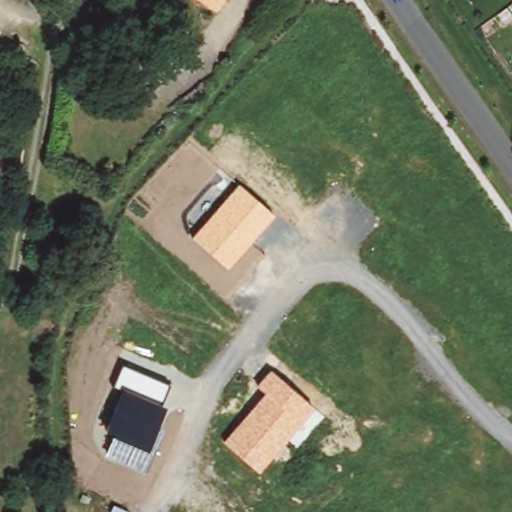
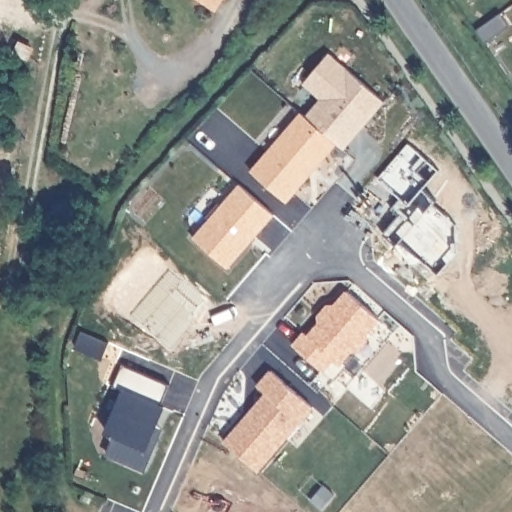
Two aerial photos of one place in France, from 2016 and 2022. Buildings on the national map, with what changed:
unchanged [(184,0),(221,0),(209,18),(184,0)]
unchanged [(265,0),(274,0),(273,4),(265,0)]
new [(343,150),(337,144),(286,202),(251,170),(301,112),(305,115),(320,98),(303,84),(329,52),(384,100),(343,150)]
unchanged [(193,238),(239,185),(274,216),(228,268),(193,238)]
new [(369,331),(370,342),(360,350),(354,348),(341,364),(335,359),(324,371),(293,342),(303,331),(308,334),(318,321),(317,315),(328,302),(334,303),(347,289),(380,319),(369,331)]
unchanged [(105,456),(113,434),(105,430),(123,390),(114,387),(124,367),(168,386),(159,405),(166,408),(156,429),(160,431),(141,471),(105,456)]
unchanged [(221,442),(265,392),(256,385),(269,370),(314,407),(258,472),(221,442)]

